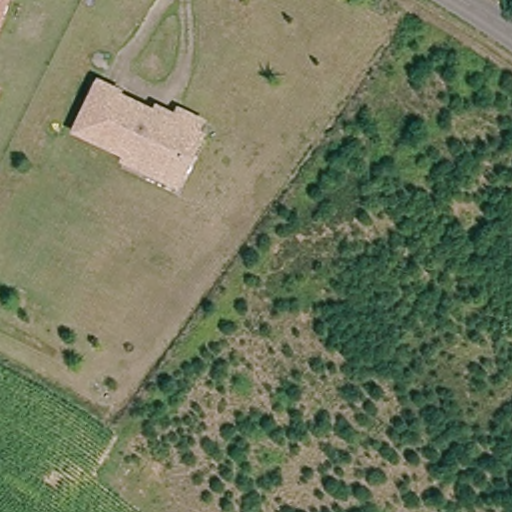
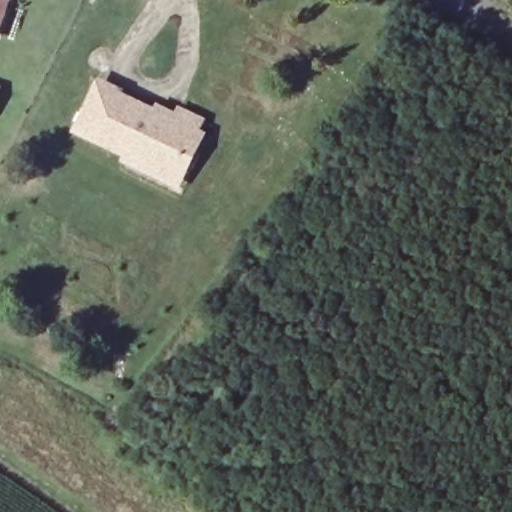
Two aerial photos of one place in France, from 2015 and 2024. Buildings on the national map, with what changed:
unchanged [(12,0),(0,30),(0,0),(12,0)]
unchanged [(176,182),(124,157),(127,151),(129,148),(77,124),(96,81),(154,108),(156,103),(175,111),(178,105),(200,115),(194,128),(200,130),(176,182)]

